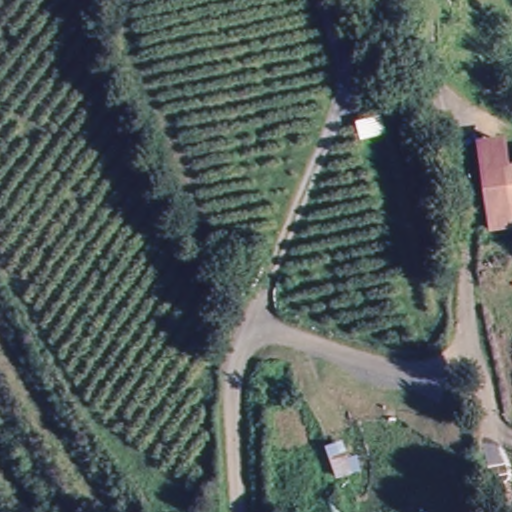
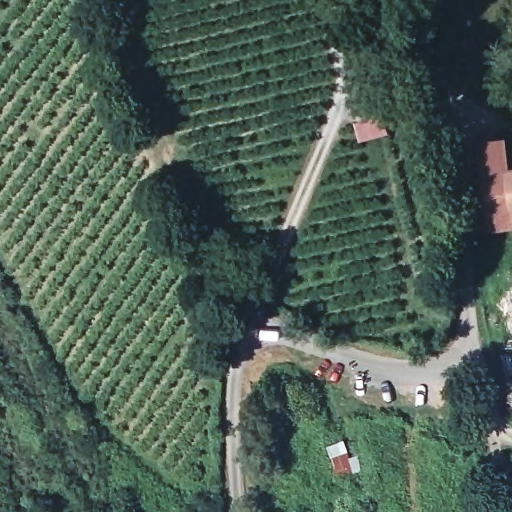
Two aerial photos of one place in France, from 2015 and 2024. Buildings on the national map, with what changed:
unchanged [(474,139),(505,134),(509,159),(512,159),(512,235),(488,239),(474,139)]

